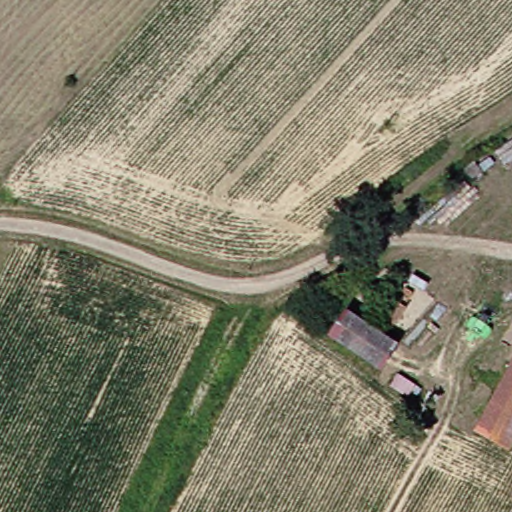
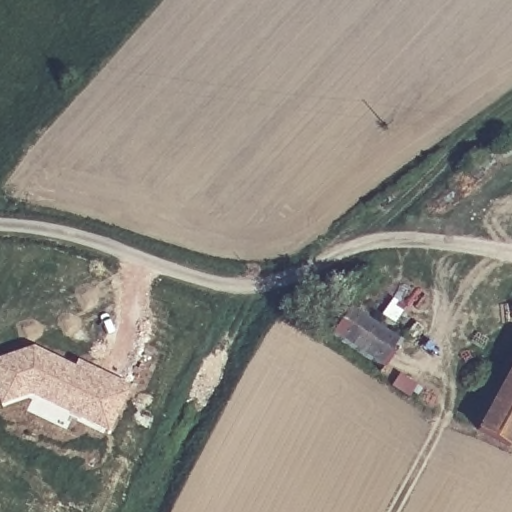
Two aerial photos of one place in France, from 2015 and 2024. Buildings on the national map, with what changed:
unchanged [(332,307),(382,345),(372,367),(316,328),(332,307)]
new [(0,358),(34,348),(73,367),(76,361),(129,387),(107,435),(29,397),(0,406),(0,358)]
unchanged [(512,358),(512,421),(496,443),(467,422),(512,358)]

